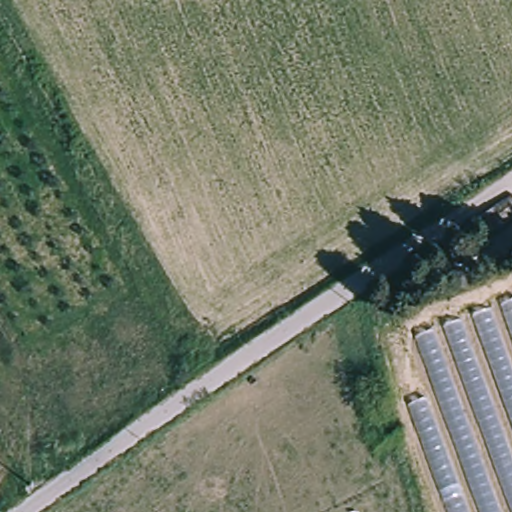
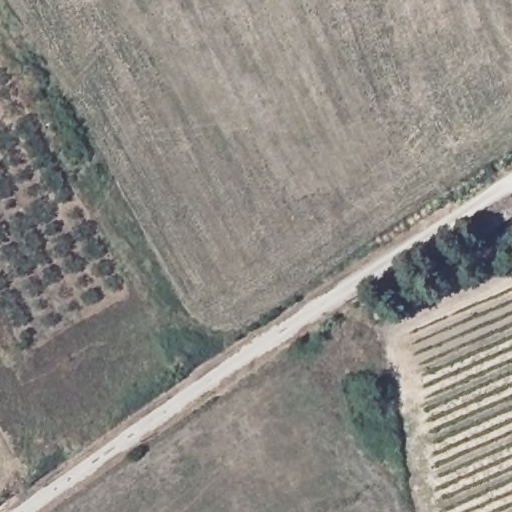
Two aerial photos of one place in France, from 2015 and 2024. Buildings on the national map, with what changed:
unchanged [(512,194),(512,218),(491,232),(480,215),(495,205),(512,194)]
demolished [(432,392),(412,333),(503,299),(512,295),(512,512),(448,512),(408,402),(432,392)]

